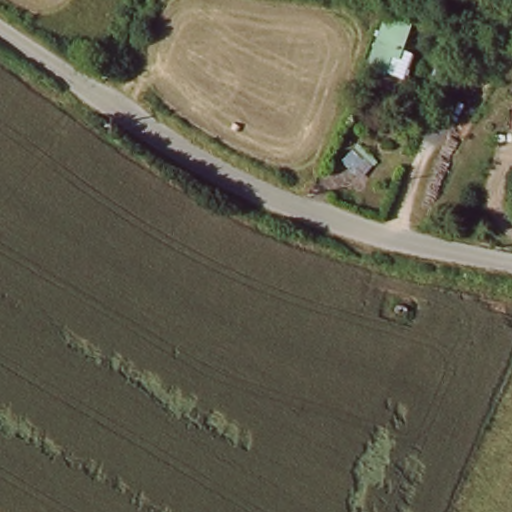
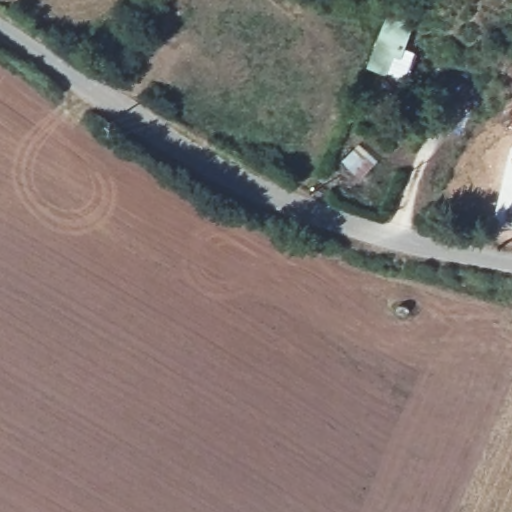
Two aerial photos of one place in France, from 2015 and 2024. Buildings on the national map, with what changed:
unchanged [(401,80),(381,72),(363,64),(375,36),(377,32),(387,8),(409,17),(399,42),(413,47),(401,80)]
unchanged [(418,74),(428,48),(443,54),(442,55),(432,80),(418,74)]

